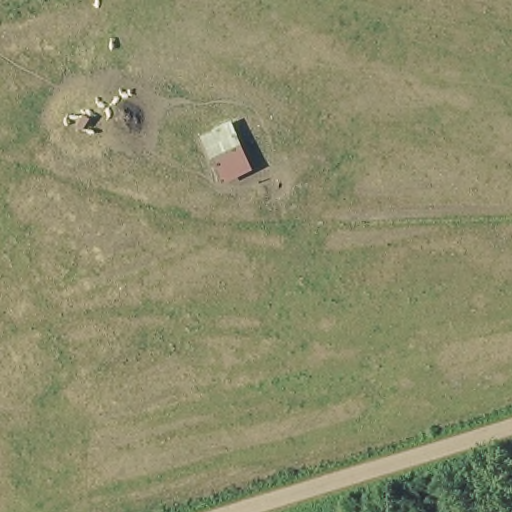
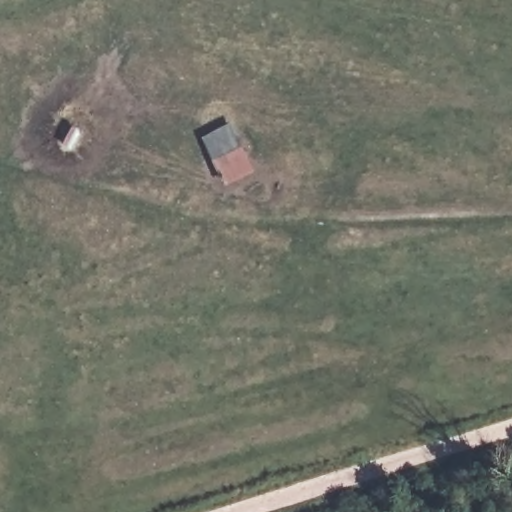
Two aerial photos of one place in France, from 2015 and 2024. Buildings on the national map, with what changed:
unchanged [(257,169),(227,181),(205,137),(236,124),(257,169)]

